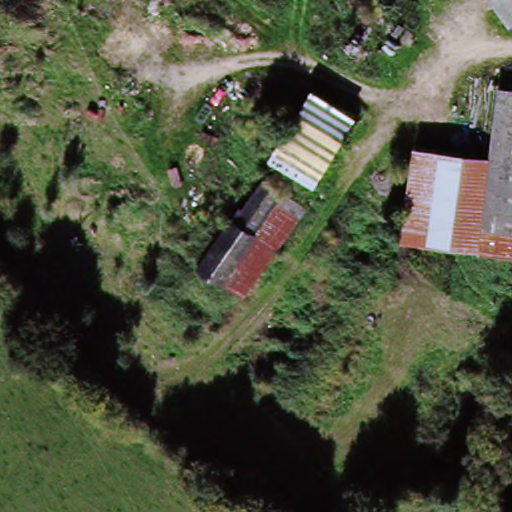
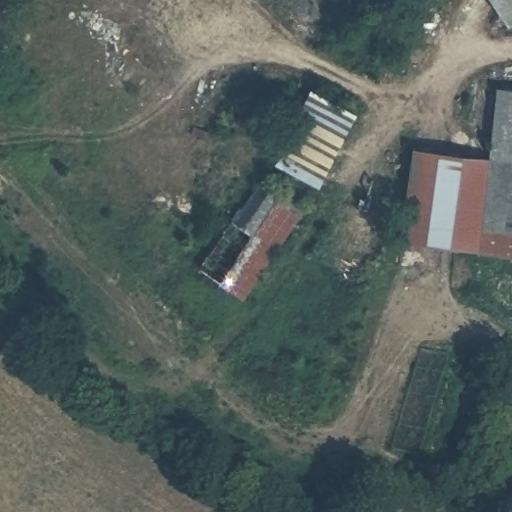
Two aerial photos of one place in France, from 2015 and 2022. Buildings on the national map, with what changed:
unchanged [(512,30),(492,0),(512,0),(512,30)]
unchanged [(307,87),(356,115),(318,187),(268,161),(307,87)]
unchanged [(410,145),(486,157),(493,87),(512,88),(512,255),(397,241),(410,145)]
unchanged [(227,220),(258,178),(275,191),(246,233),(227,220)]
unchanged [(230,292),(248,266),(237,257),(252,238),(246,233),(275,191),(305,212),(241,300),(230,292)]
unchanged [(227,220),(246,233),(252,238),(237,257),(248,266),(230,292),(194,266),(227,220)]

